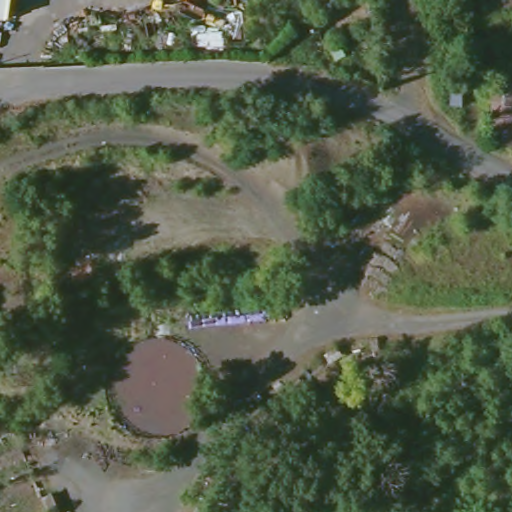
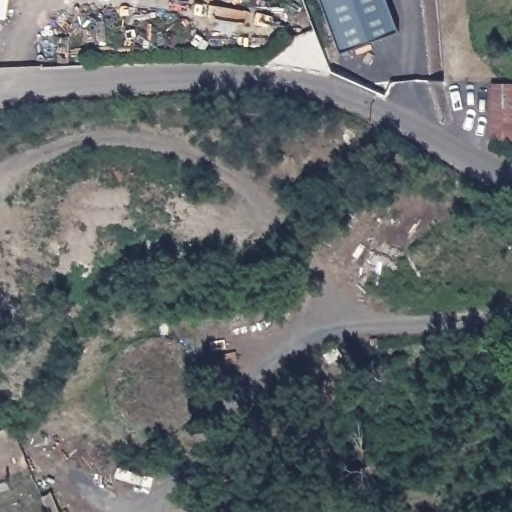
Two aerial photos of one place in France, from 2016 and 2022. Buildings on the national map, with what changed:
unchanged [(0,0),(5,0),(3,15),(0,15),(0,0)]
new [(398,37),(339,59),(316,0),(384,0),(398,37)]
unchanged [(489,145),(492,89),(512,90),(512,146),(489,145)]

